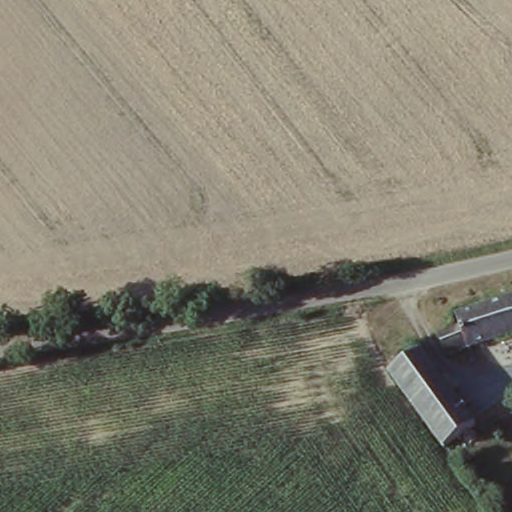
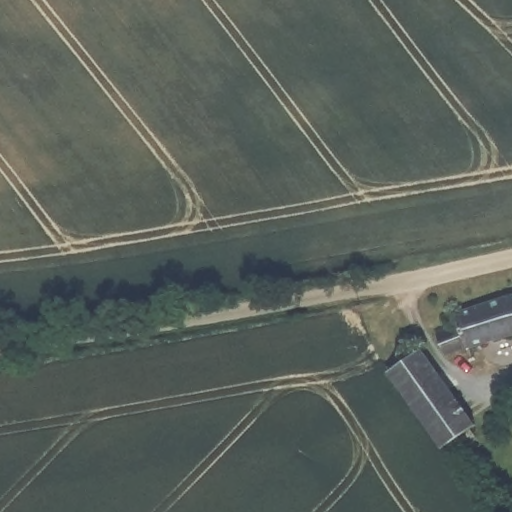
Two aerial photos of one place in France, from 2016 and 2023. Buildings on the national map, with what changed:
unchanged [(509,289),(512,288),(512,325),(447,342),(442,326),(459,321),(455,303),(509,289)]
unchanged [(421,346),(482,433),(447,454),(386,365),(421,346)]

